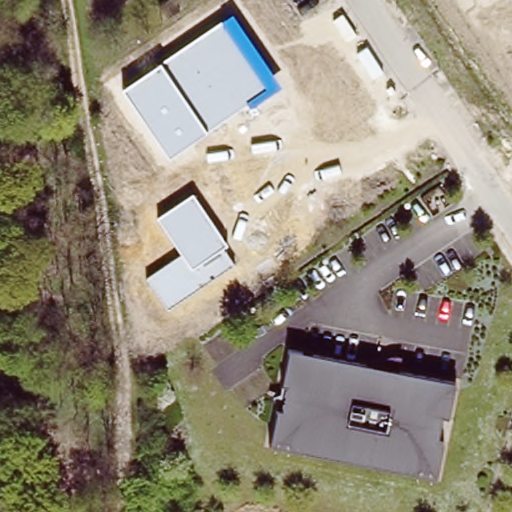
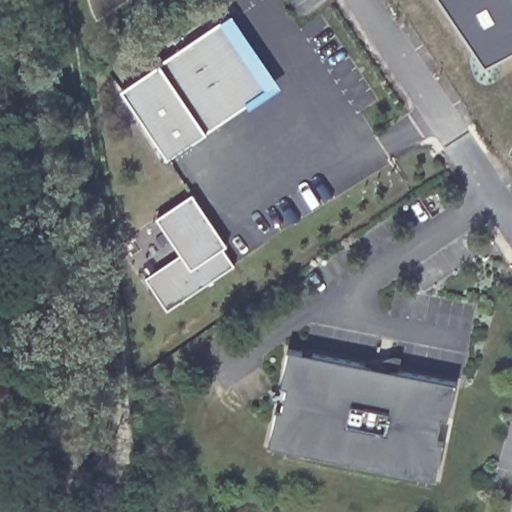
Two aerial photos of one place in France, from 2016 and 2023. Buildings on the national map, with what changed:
new [(443,0),(512,0),(512,47),(483,62),(443,0)]
unchanged [(122,88),(231,14),(277,83),(169,156),(122,88)]
unchanged [(227,244),(224,247),(235,263),(168,308),(146,277),(182,253),(157,217),(192,194),(227,244)]
unchanged [(444,415),(439,440),(442,441),(435,476),(267,441),(275,406),(280,407),(285,382),(279,381),(286,347),(365,362),(365,367),(390,371),(390,367),(455,381),(448,416),(444,415)]
unchanged [(164,487),(158,512),(144,512),(150,484),(164,487)]

